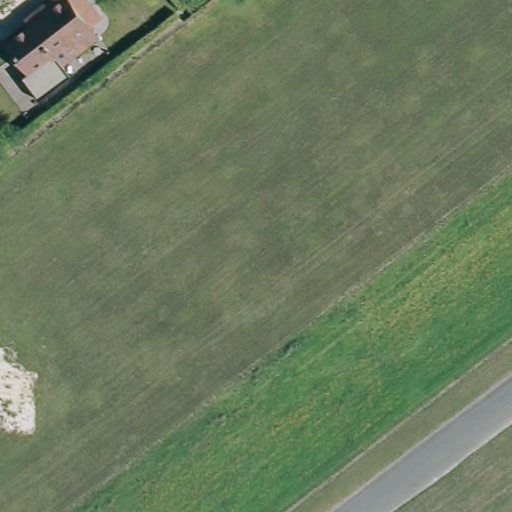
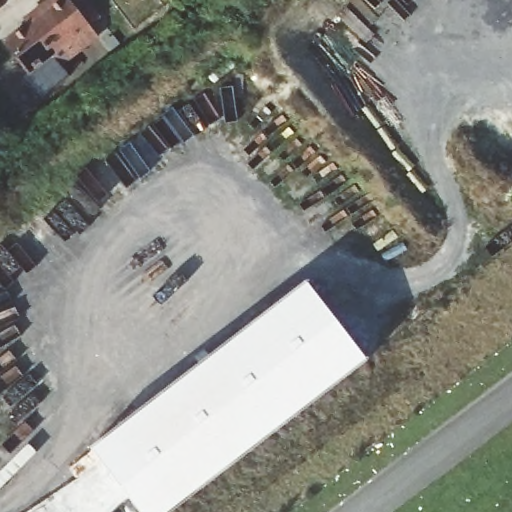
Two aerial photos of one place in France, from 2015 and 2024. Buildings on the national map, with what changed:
unchanged [(5,32),(47,0),(94,0),(100,7),(89,16),(97,26),(81,38),(59,55),(51,44),(28,62),(5,32)]
new [(367,360),(169,512),(138,512),(90,448),(306,282),(367,360)]

